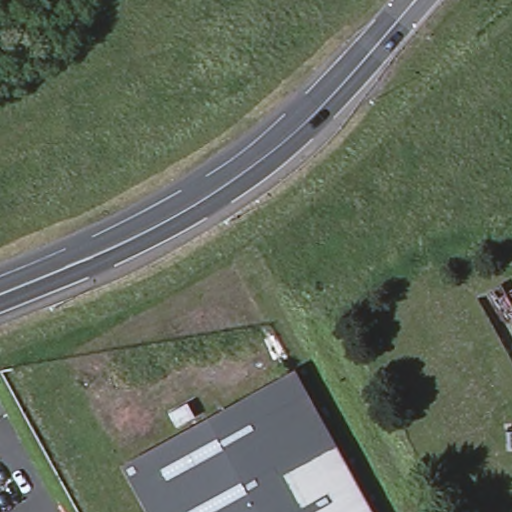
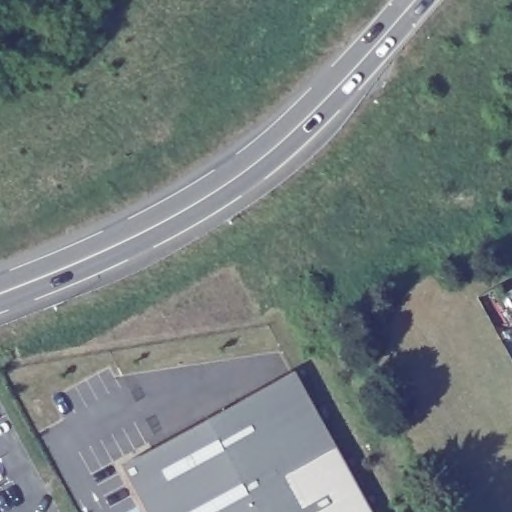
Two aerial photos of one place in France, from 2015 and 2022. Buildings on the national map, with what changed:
unchanged [(372,512),(147,512),(122,466),(295,371),(372,512)]
unchanged [(195,417),(177,427),(170,414),(188,404),(195,417)]

